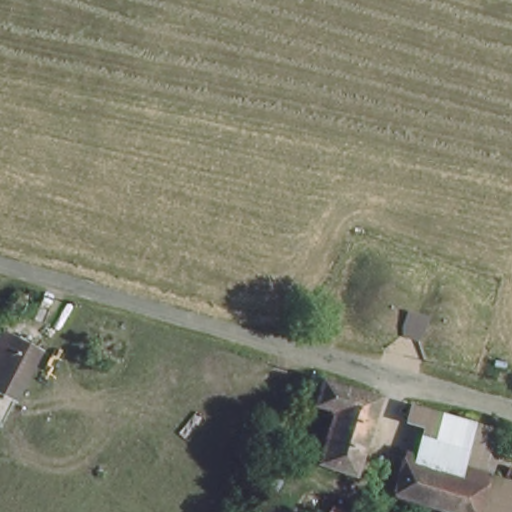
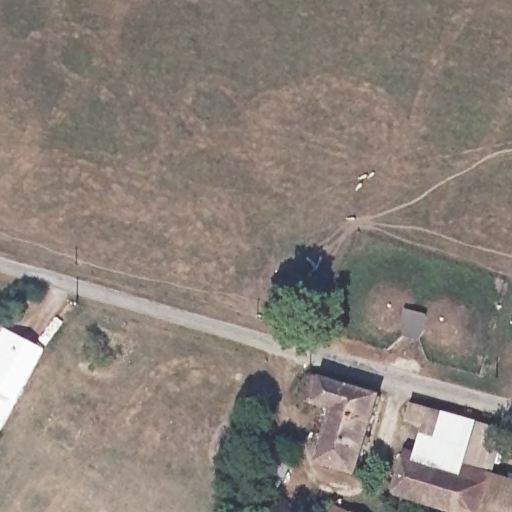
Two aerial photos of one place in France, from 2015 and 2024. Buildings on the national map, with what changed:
unchanged [(7,413),(0,410),(0,342),(12,322),(48,338),(7,413)]
unchanged [(355,478),(317,463),(334,415),(306,405),(317,387),(341,394),(380,405),(355,478)]
unchanged [(412,409),(466,423),(455,463),(438,458),(443,436),(407,427),(412,409)]
unchanged [(476,512),(459,512),(407,497),(420,455),(438,458),(455,463),(466,423),(497,432),(487,471),(476,512)]
unchanged [(487,471),(512,477),(512,512),(476,512),(487,471)]
unchanged [(334,506),(347,512),(331,512),(334,506)]

